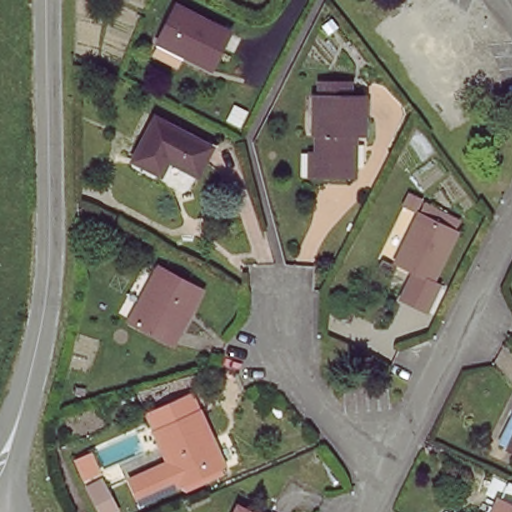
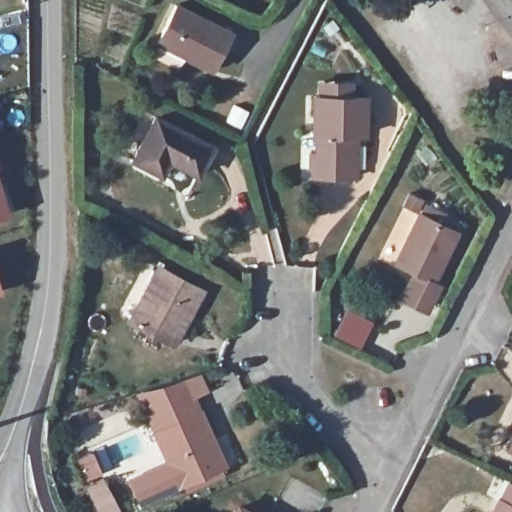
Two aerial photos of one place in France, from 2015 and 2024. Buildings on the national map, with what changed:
unchanged [(231,34),(211,69),(157,40),(177,3),(231,34)]
unchanged [(308,146),(321,145),(321,130),(317,130),(317,96),(325,96),(325,81),(352,80),(352,96),(370,95),(370,136),(360,136),(359,175),(321,176),(309,176),(308,146)]
unchanged [(211,151),(196,179),(171,164),(164,179),(132,161),(153,120),(211,151)]
new [(13,217),(0,222),(0,170),(13,217)]
unchanged [(442,218),(446,211),(456,216),(453,222),(456,225),(430,273),(395,255),(421,207),(442,218)]
unchanged [(200,290),(171,341),(129,320),(158,267),(200,290)]
new [(6,294),(0,296),(0,274),(6,294)]
unchanged [(191,484),(186,475),(147,494),(137,473),(174,455),(152,410),(192,390),(225,457),(229,465),(191,484)]
unchanged [(512,443),(508,441),(512,435),(512,443)]
unchanged [(92,451),(100,473),(87,479),(77,458),(92,451)]
unchanged [(107,481),(118,503),(103,510),(93,489),(107,481)]
unchanged [(497,496),(512,504),(512,512),(489,512),(497,496)]
unchanged [(254,512),(235,512),(239,505),(254,512)]

